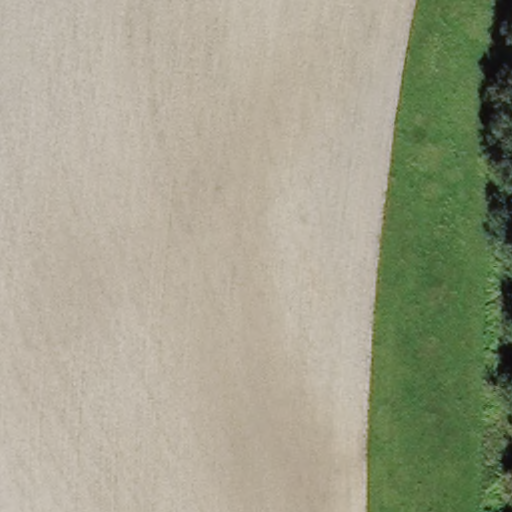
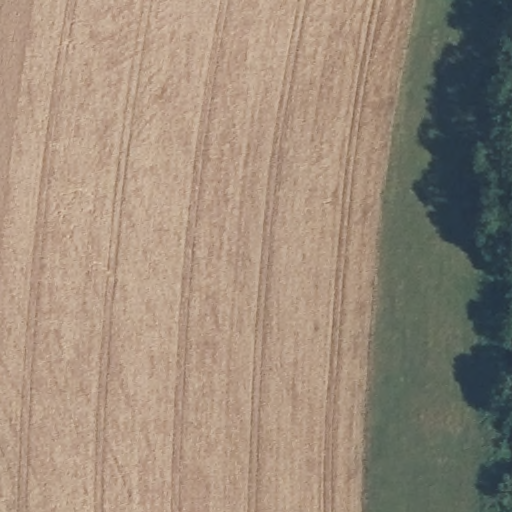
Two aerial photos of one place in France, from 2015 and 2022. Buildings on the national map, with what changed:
[]

